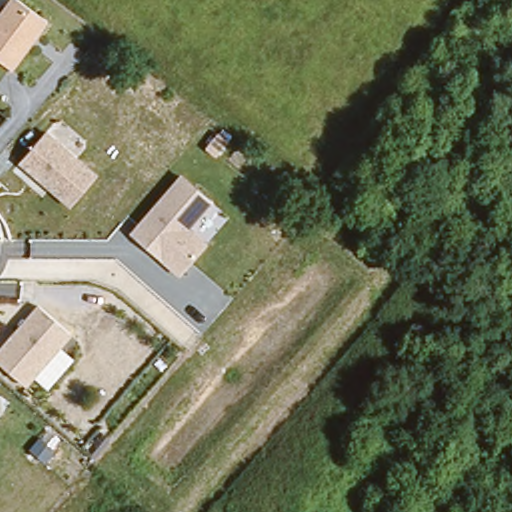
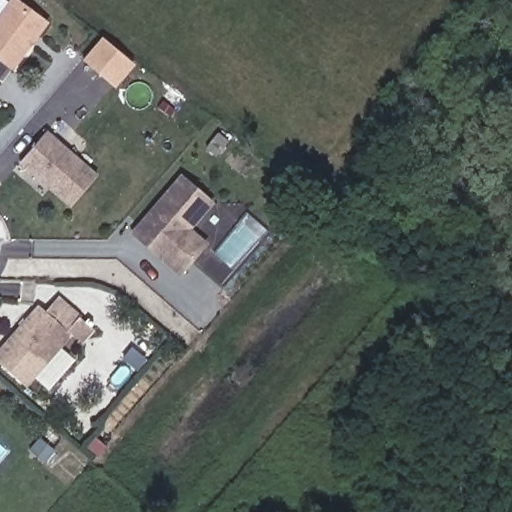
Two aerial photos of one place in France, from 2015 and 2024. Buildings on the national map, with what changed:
unchanged [(10,0),(20,0),(49,22),(15,68),(0,58),(0,14),(10,0)]
new [(103,37),(135,65),(115,89),(83,60),(103,37)]
unchanged [(49,132),(99,173),(72,206),(22,164),(49,132)]
unchanged [(181,276),(130,232),(182,172),(216,201),(195,229),(209,242),(181,276)]
unchanged [(39,304),(74,333),(30,386),(0,362),(0,350),(39,304)]

